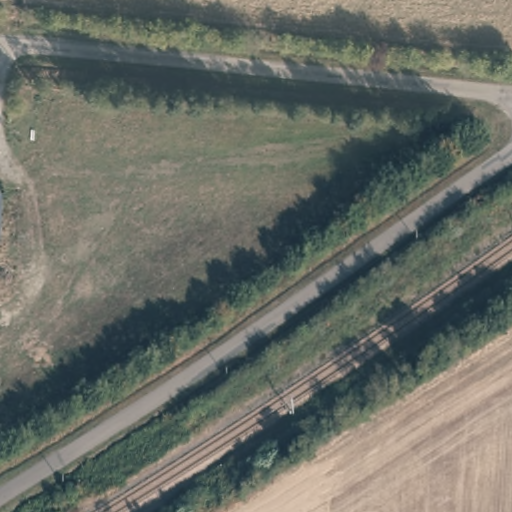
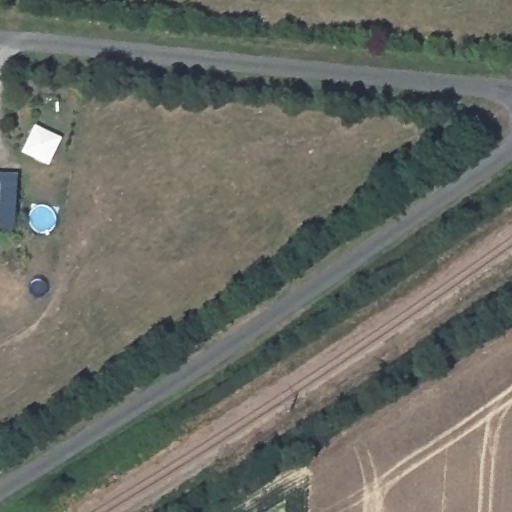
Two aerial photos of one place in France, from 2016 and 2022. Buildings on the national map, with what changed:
new [(17,231),(0,229),(0,174),(20,175),(17,231)]

